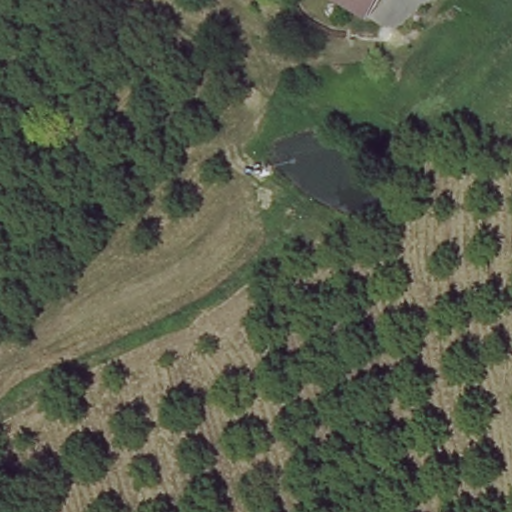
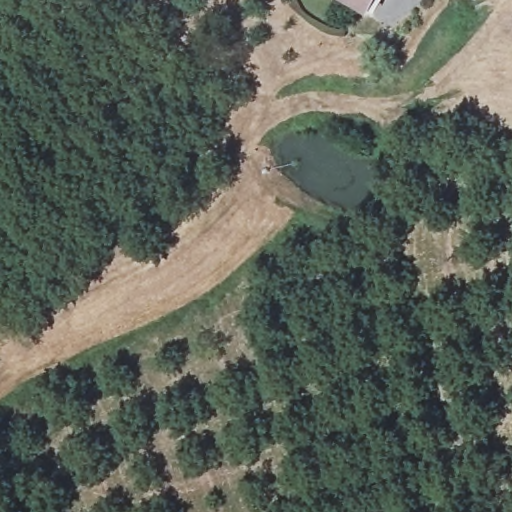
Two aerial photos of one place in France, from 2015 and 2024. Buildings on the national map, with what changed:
unchanged [(368,15),(344,0),(377,0),(368,15)]

